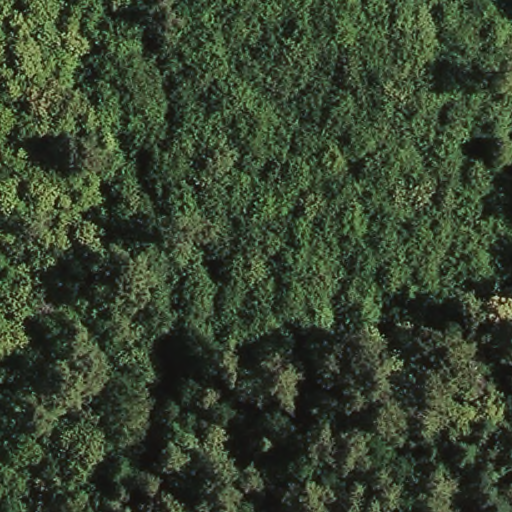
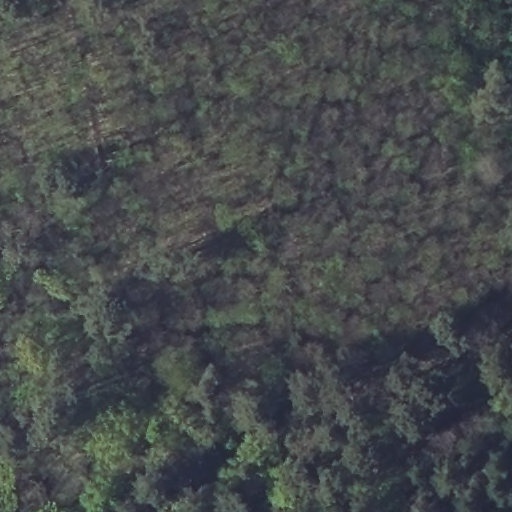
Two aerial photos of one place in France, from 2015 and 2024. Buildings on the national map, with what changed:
unchanged [(354,378),(357,372),(364,372),(370,375),(369,382),(366,386),(359,387),(355,383),(354,378)]

